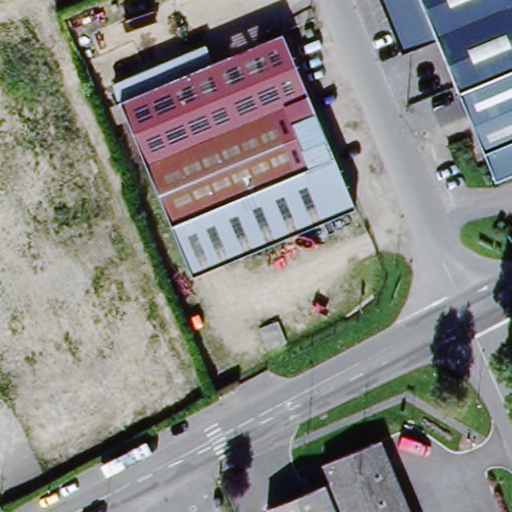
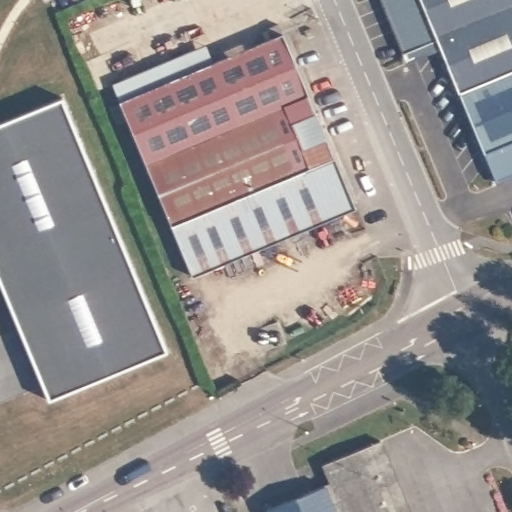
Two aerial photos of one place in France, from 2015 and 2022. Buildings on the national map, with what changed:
unchanged [(432,40),(400,54),(378,0),(512,0),(512,173),(492,181),(432,40)]
demolished [(7,25),(91,210),(0,251),(0,28),(7,25)]
unchanged [(120,101),(114,85),(206,45),(214,62),(279,34),(356,210),(191,277),(120,101)]
new [(62,98),(166,352),(48,400),(0,282),(0,123),(62,98)]
unchanged [(331,483),(323,465),(382,440),(413,512),(343,512),(331,483)]
unchanged [(268,510),(331,483),(343,512),(269,512),(268,510)]

